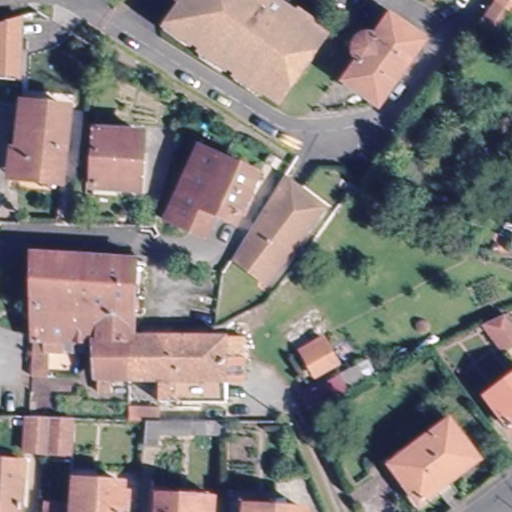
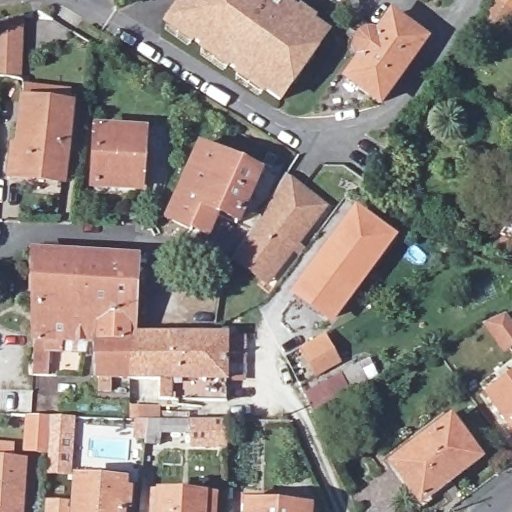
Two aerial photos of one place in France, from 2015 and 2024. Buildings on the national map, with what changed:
unchanged [(248,81),(251,76),(239,68),(236,72),(212,56),(216,52),(204,43),(200,48),(175,30),(180,24),(196,0),(284,0),(333,34),(287,101),(274,92),(271,97),(248,81)]
unchanged [(500,40),(481,21),(495,0),(512,0),(512,20),(500,40)]
unchanged [(393,22),(425,45),(378,106),(347,82),(362,63),(358,58),(358,50),(360,45),(365,41),(372,39),(379,40),(393,22)]
unchanged [(19,42),(0,42),(0,33),(19,33),(19,42)]
unchanged [(5,71),(0,70),(0,64),(6,65),(5,71)]
unchanged [(11,152),(14,153),(19,105),(67,110),(60,183),(16,179),(8,178),(11,152)]
unchanged [(139,198),(86,193),(87,184),(93,129),(138,133),(136,154),(144,155),(139,198)]
unchanged [(183,232),(181,237),(156,226),(159,221),(190,150),(248,175),(228,220),(225,226),(206,218),(200,232),(197,238),(183,232)]
unchanged [(277,183),(321,208),(275,274),(269,284),(231,263),(237,252),(277,183)]
new [(289,297),(354,208),(397,238),(332,328),(289,297)]
unchanged [(511,225),(512,223),(512,226),(511,225)]
unchanged [(135,375),(114,374),(113,388),(99,387),(100,373),(96,373),(98,346),(81,346),(61,345),(61,354),(46,354),(46,344),(36,343),(36,303),(34,298),(34,252),(134,259),(135,332),(135,375)]
demolished [(329,332),(292,350),(280,330),(321,310),(329,332)]
unchanged [(506,319),(512,326),(512,350),(506,355),(485,328),(506,319)]
unchanged [(227,335),(225,398),(159,398),(160,376),(135,375),(135,332),(147,332),(227,335)]
unchanged [(342,363),(318,378),(304,354),(328,338),(342,363)]
unchanged [(377,378),(316,414),(307,397),(369,360),(377,378)]
unchanged [(44,372),(44,380),(34,380),(34,372),(44,372)]
unchanged [(486,397),(512,378),(512,433),(486,397)]
unchanged [(48,455),(28,454),(29,420),(51,421),(72,421),(71,456),(48,455)]
unchanged [(478,461),(420,505),(391,466),(448,423),(478,461)]
unchanged [(229,424),(228,438),(163,435),(162,447),(144,446),(146,424),(229,424)]
unchanged [(0,512),(0,462),(26,465),(22,512),(0,512)]
unchanged [(70,505),(69,508),(75,508),(78,478),(123,480),(121,512),(42,512),(43,504),(70,505)]
unchanged [(215,498),(214,512),(158,512),(159,493),(215,498)]
unchanged [(286,512),(248,512),(249,510),(286,512)]

